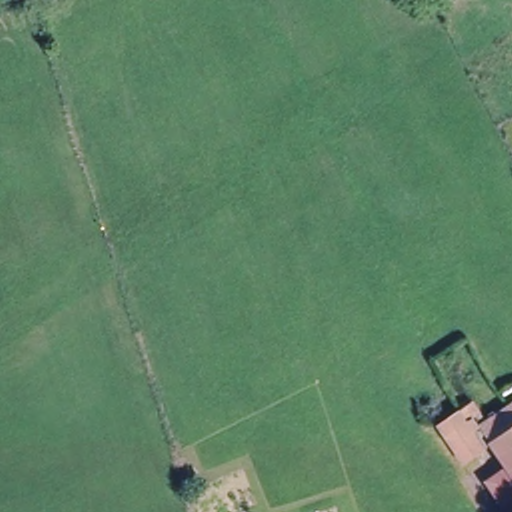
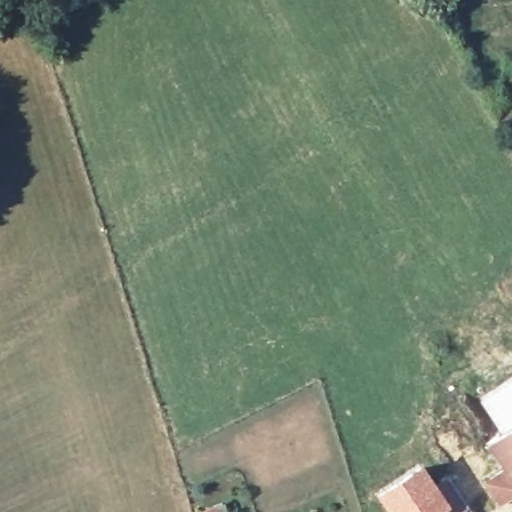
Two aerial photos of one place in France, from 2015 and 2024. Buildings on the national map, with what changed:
unchanged [(485,482),(505,468),(489,447),(465,462),(438,422),(471,402),(485,422),(512,404),(512,512),(506,512),(499,502),(485,482)]
new [(421,462),(436,482),(447,475),(469,507),(462,512),(450,512),(447,508),(442,512),(388,512),(376,494),(421,462)]
new [(469,507),(472,512),(462,512),(469,507)]

